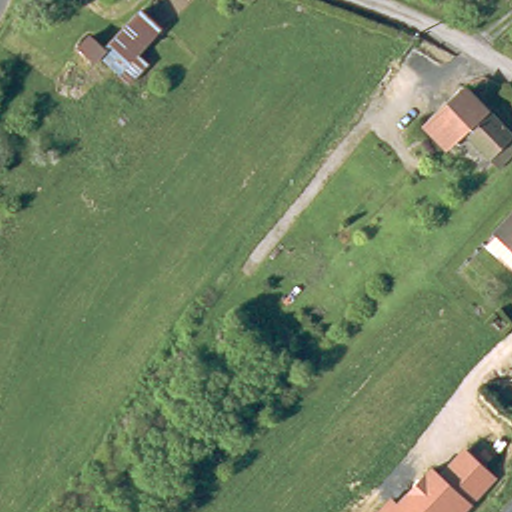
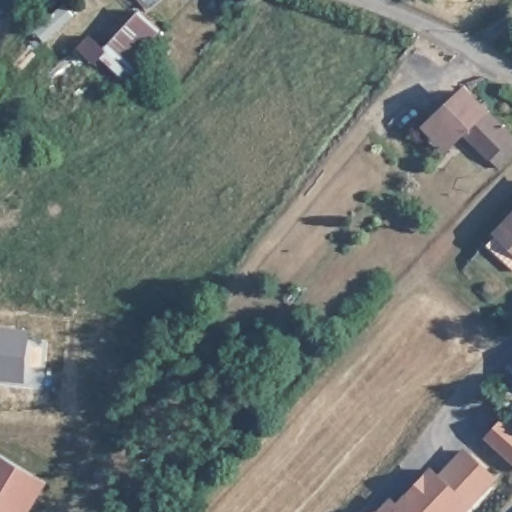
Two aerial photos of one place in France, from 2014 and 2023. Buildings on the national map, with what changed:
unchanged [(85,42),(96,31),(110,45),(147,7),(165,25),(141,49),(153,60),(135,79),(105,50),(100,56),(85,42)]
unchanged [(492,101),(512,124),(512,152),(504,161),(493,151),(484,156),(480,160),(458,134),(452,140),(433,118),(470,86),(487,105),(492,101)]
unchanged [(488,245),(512,219),(512,267),(488,245)]
new [(30,342),(27,373),(17,381),(0,379),(0,329),(23,332),(30,342)]
unchanged [(395,501),(431,465),(439,472),(465,446),(498,479),(472,506),(466,512),(376,512),(390,497),(395,501)]
new [(30,512),(0,512),(0,453),(47,481),(30,512)]
unchanged [(372,512),(374,510),(376,512),(372,512)]

